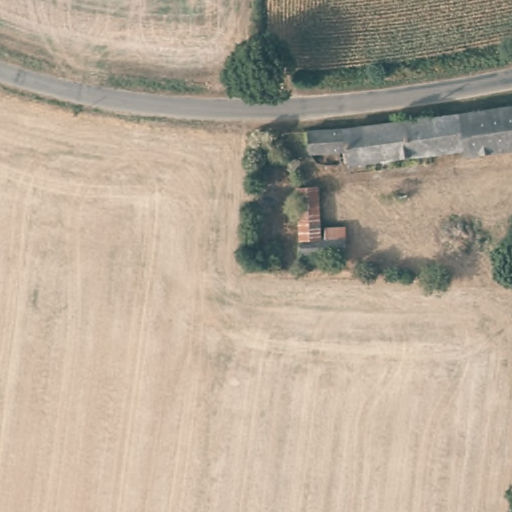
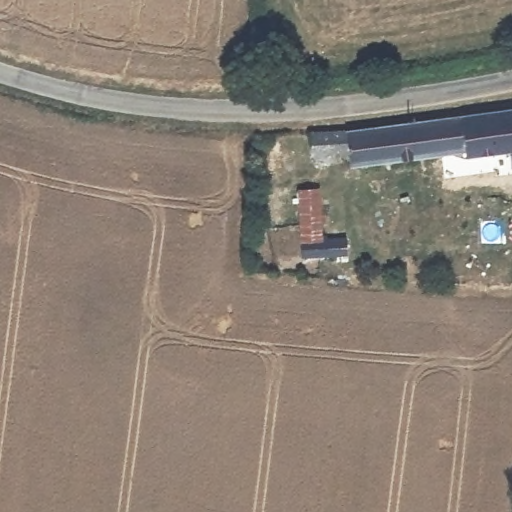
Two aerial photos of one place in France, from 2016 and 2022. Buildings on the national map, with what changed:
unchanged [(469,155),(467,147),(352,163),(349,150),(311,151),(310,129),(472,114),(512,107),(512,148),(469,155)]
unchanged [(344,226),(345,237),(345,255),(302,255),(299,187),(319,187),(321,237),(328,237),(328,227),(344,226)]

